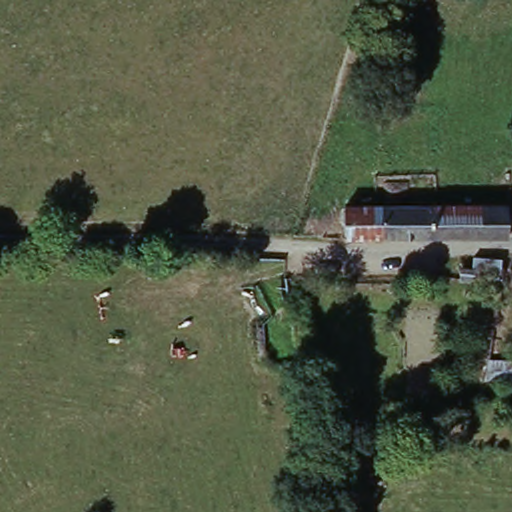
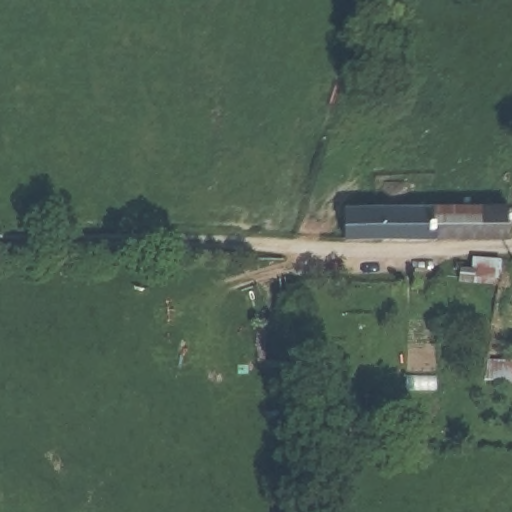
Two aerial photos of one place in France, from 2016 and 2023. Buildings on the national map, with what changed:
unchanged [(511,203),(512,238),(440,240),(439,205),(511,203)]
unchanged [(378,207),(439,205),(440,240),(377,240),(348,240),(349,207),(378,207)]
unchanged [(459,293),(460,278),(473,277),(474,261),(499,262),(493,293),(459,293)]

